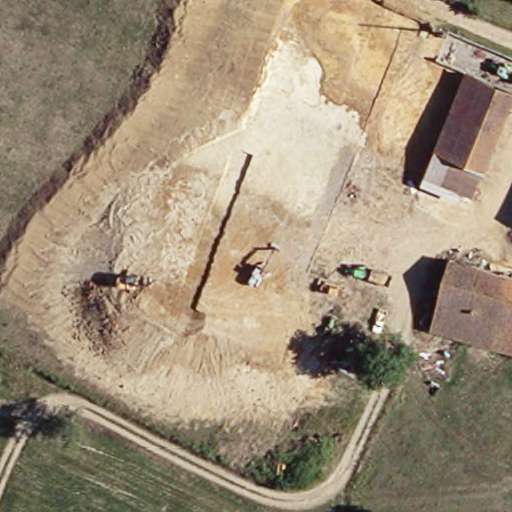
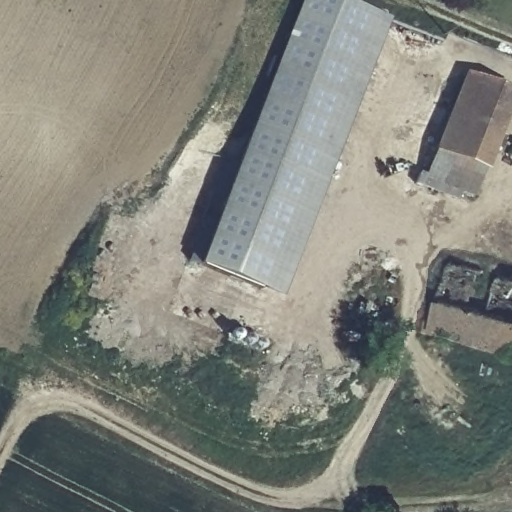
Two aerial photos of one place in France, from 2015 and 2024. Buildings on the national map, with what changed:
new [(278,300),(197,266),(303,0),(345,0),(392,19),(278,300)]
unchanged [(463,93),(471,73),(509,87),(512,89),(512,112),(482,194),(463,187),(433,176),(443,150),(463,93)]
unchanged [(453,265),(512,278),(512,347),(438,332),(453,265)]

